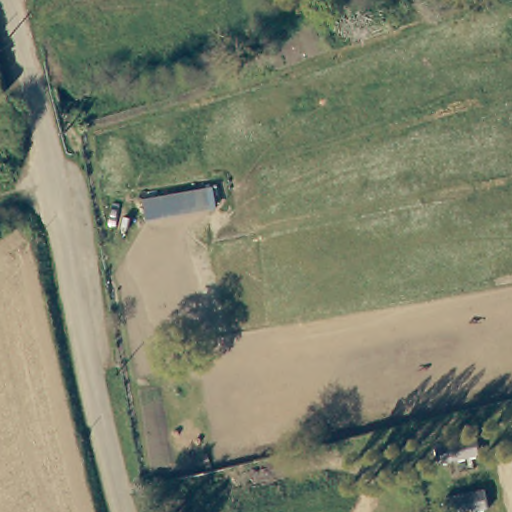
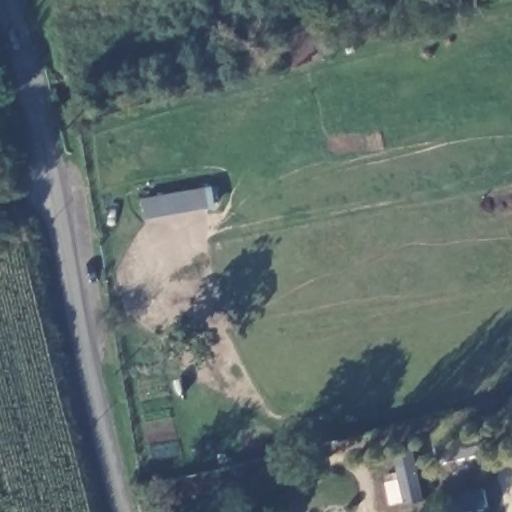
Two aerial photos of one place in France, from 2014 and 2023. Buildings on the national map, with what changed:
unchanged [(174,196),(214,191),(216,207),(178,213),(146,218),(144,201),(174,196)]

